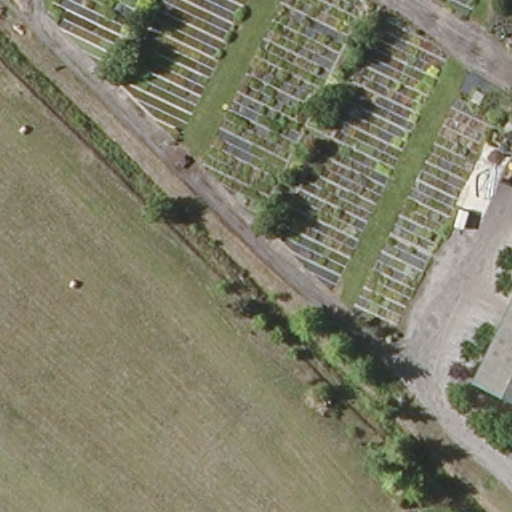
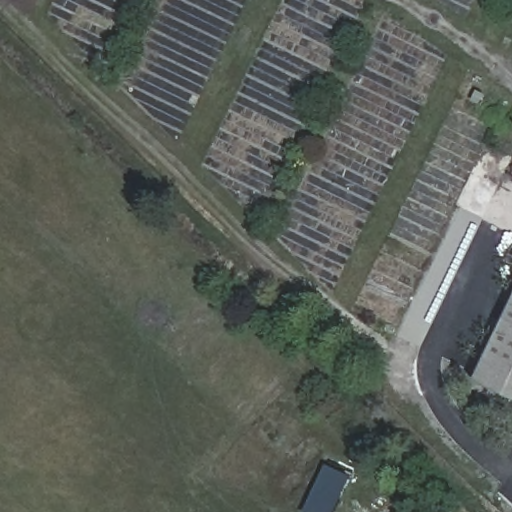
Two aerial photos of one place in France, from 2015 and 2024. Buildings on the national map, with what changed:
unchanged [(508,8),(512,0),(512,10),(508,8)]
unchanged [(512,322),(512,400),(481,384),(512,322)]
new [(305,512),(325,472),(350,485),(337,512),(305,512)]

